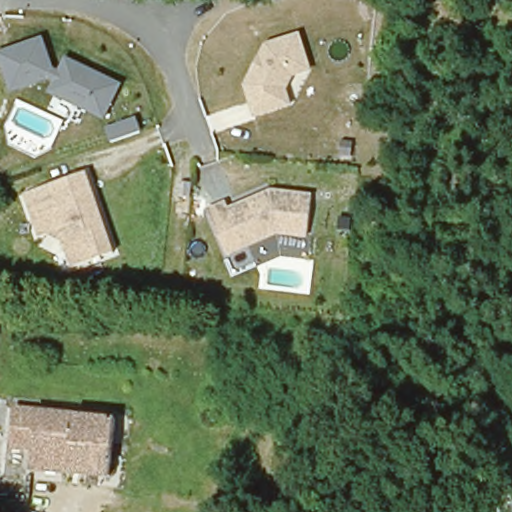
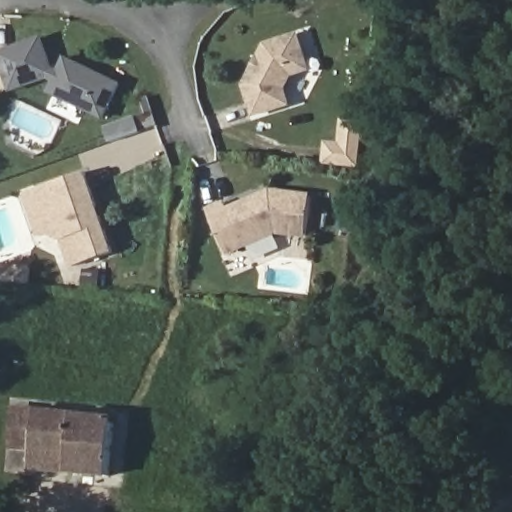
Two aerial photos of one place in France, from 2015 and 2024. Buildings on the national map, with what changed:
unchanged [(242,85),(265,43),(298,31),(312,70),(293,76),(286,88),(291,106),(253,118),(242,85)]
unchanged [(52,67),(57,70),(65,56),(122,83),(104,121),(47,93),(52,83),(48,79),(10,93),(0,66),(0,51),(42,36),(52,67)]
new [(326,144),(340,146),(343,121),(362,123),(357,166),(323,163),(326,144)]
unchanged [(112,249),(68,266),(60,241),(44,231),(35,234),(20,194),(83,169),(112,249)]
unchanged [(308,235),(276,232),(226,254),(205,206),(224,198),(229,204),(267,187),(310,192),(308,235)]
unchanged [(30,477),(31,449),(19,446),(7,444),(12,406),(27,409),(117,420),(109,481),(30,477)]

